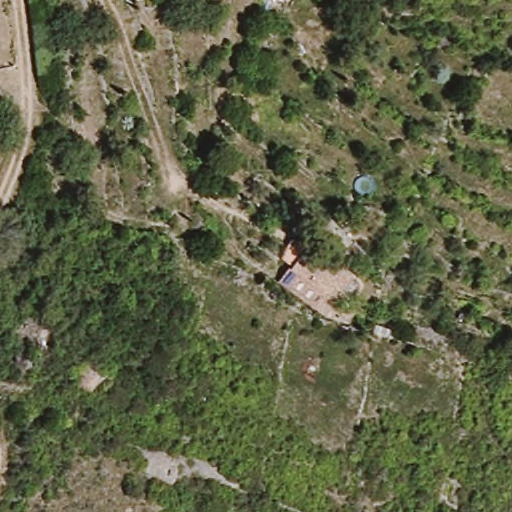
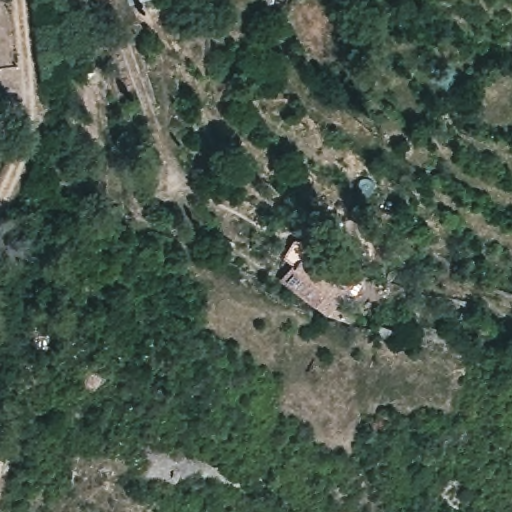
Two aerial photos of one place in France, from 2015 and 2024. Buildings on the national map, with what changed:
unchanged [(337,302),(356,307),(353,318),(332,311),(318,300),(287,277),(297,263),(285,254),(295,237),(310,236),(312,242),(343,266),(356,275),(337,302)]
unchanged [(47,312),(42,367),(15,367),(17,312),(47,312)]

